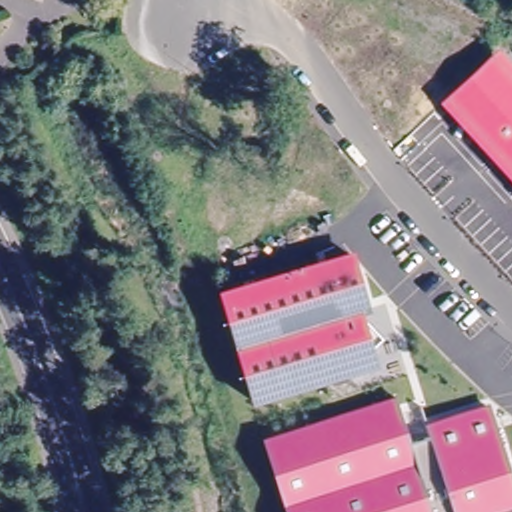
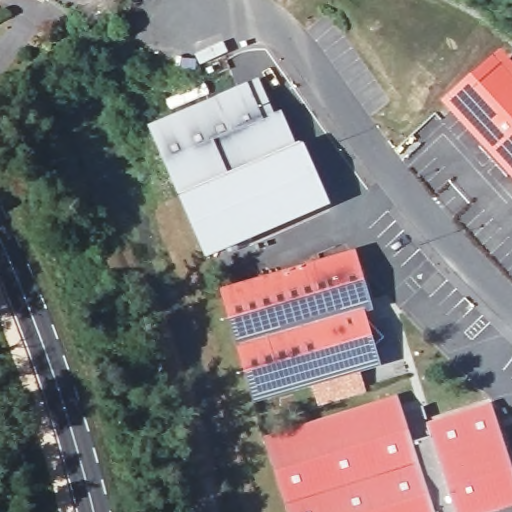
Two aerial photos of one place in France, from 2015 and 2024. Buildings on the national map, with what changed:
unchanged [(487,136),(498,126),(467,90),(506,55),(512,62),(512,162),(487,136)]
new [(258,79),(275,114),(283,111),(297,148),(303,146),(332,206),(205,258),(149,127),(258,79)]
unchanged [(253,402),(222,295),(353,256),(370,310),(362,312),(363,316),(386,340),(373,351),(378,365),(253,402)]
unchanged [(288,512),(281,490),(266,442),(400,400),(413,444),(432,438),(428,427),(491,407),(512,476),(512,506),(492,512),(288,512)]

